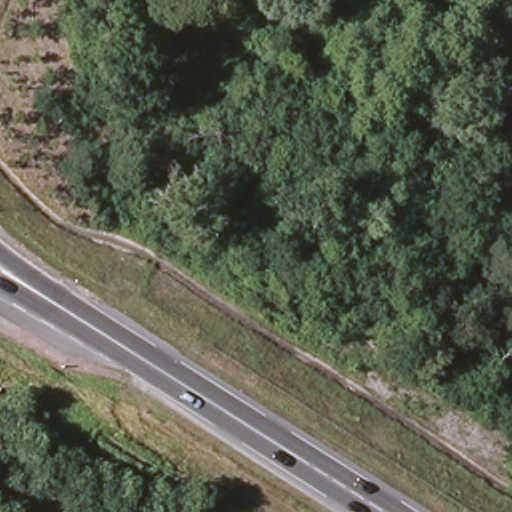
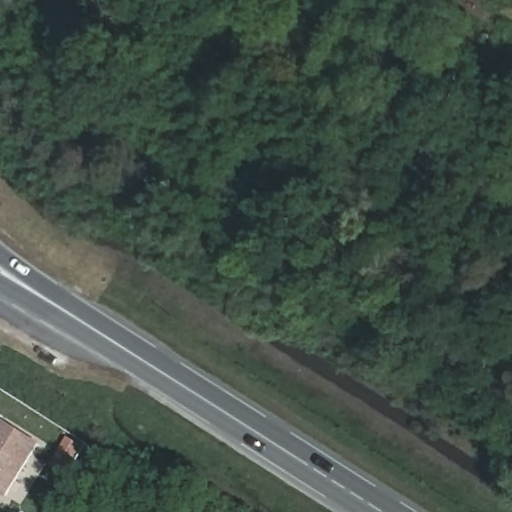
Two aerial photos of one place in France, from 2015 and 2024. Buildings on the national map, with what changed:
new [(7,498),(0,493),(0,418),(42,443),(7,498)]

